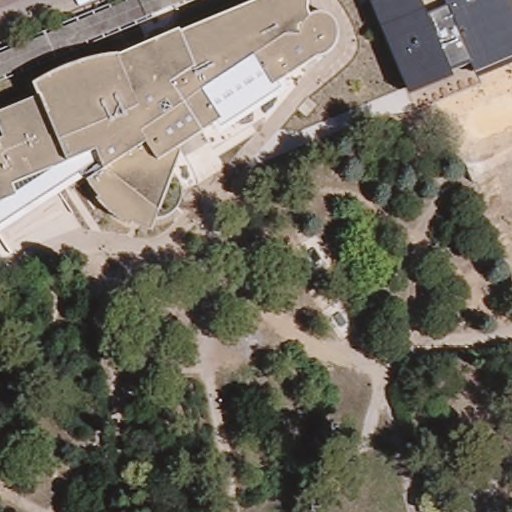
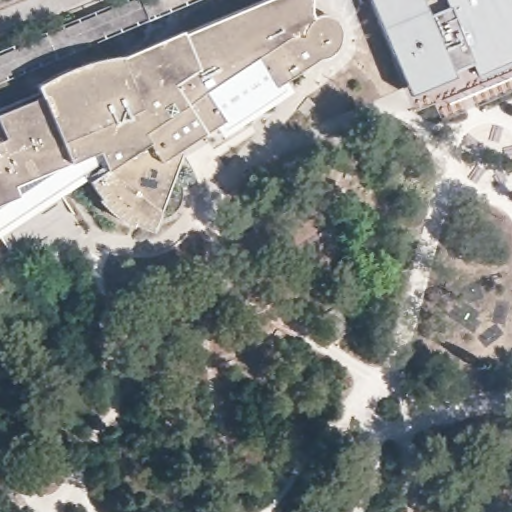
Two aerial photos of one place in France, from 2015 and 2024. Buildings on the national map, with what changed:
unchanged [(173,0),(0,72),(0,40),(96,0),(173,0)]
unchanged [(177,206),(173,211),(169,215),(162,219),(157,219),(152,232),(142,229),(134,226),(132,225),(131,228),(122,222),(112,215),(102,207),(97,200),(98,198),(93,191),(87,181),(104,170),(100,159),(97,151),(68,163),(55,169),(14,186),(17,194),(18,196),(5,201),(0,204),(0,113),(38,96),(34,85),(42,80),(57,72),(72,66),(87,61),(100,58),(119,55),(119,56),(180,31),(181,34),(261,0),(309,0),(308,11),(310,16),(312,15),(314,14),(318,14),(321,14),(326,14),(329,16),(333,19),(336,22),(338,30),(339,37),(337,41),(335,47),(331,52),(328,55),(325,57),(319,59),(316,59),(277,84),(280,89),(221,128),(218,123),(178,149),(181,153),(173,172),(178,179),(181,186),(181,193),(180,200),(177,206)]
unchanged [(472,71),(469,62),(450,70),(453,77),(409,95),(370,0),(512,0),(512,64),(476,80),(472,71)]
unchanged [(5,201),(18,196),(17,194),(55,169),(68,163),(97,151),(100,159),(0,225),(0,205),(5,201)]

